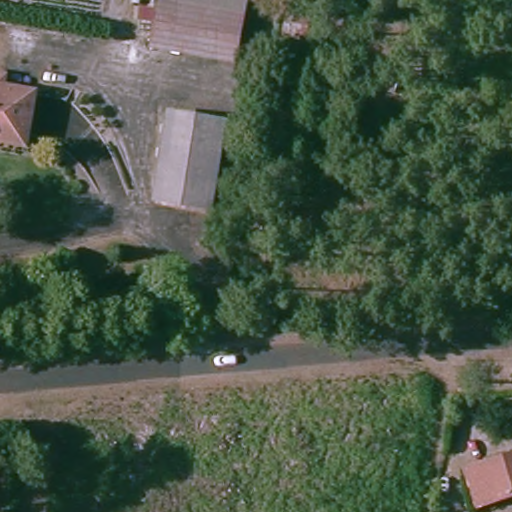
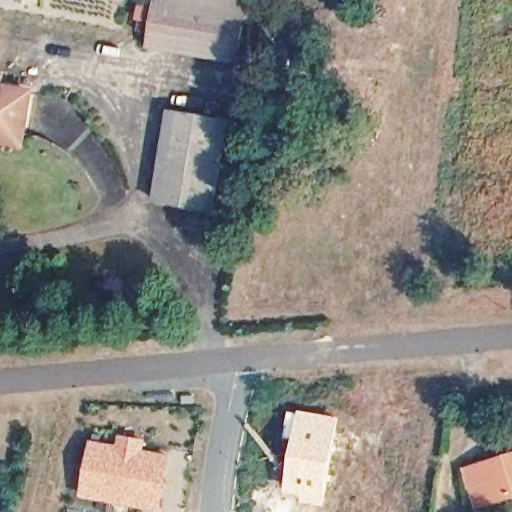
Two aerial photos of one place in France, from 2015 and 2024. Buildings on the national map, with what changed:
unchanged [(156,0),(188,0),(181,40),(150,34),(153,15),(156,0)]
unchanged [(188,0),(238,0),(247,1),(240,49),(181,40),(188,0)]
unchanged [(282,37),(288,0),(305,0),(304,3),(314,3),(308,41),(282,37)]
unchanged [(0,79),(2,79),(2,88),(33,93),(26,136),(25,143),(0,140),(0,79)]
unchanged [(152,201),(165,122),(167,111),(225,121),(211,214),(152,201)]
new [(288,410),(297,412),(297,409),(339,416),(325,499),(286,492),(295,439),(283,437),(288,410)]
new [(88,439),(115,443),(117,433),(145,438),(143,448),(170,452),(161,511),(78,496),(88,439)]
unchanged [(479,462),(512,451),(512,494),(491,501),(490,497),(476,501),(472,487),(465,467),(479,462)]

